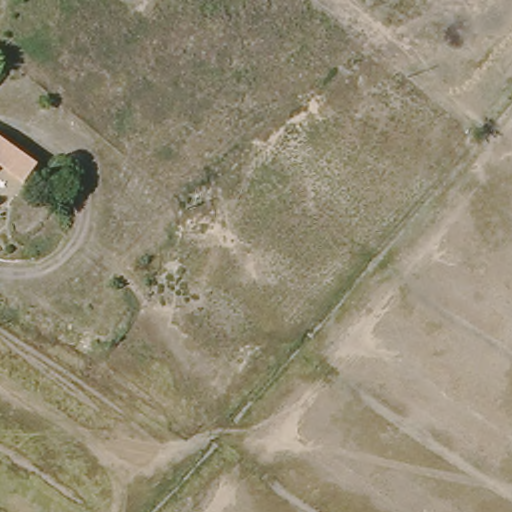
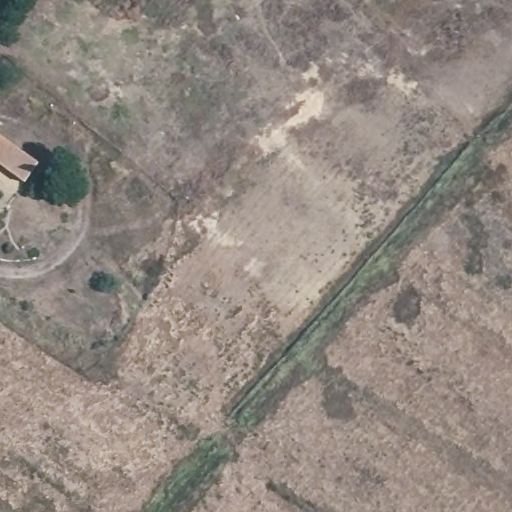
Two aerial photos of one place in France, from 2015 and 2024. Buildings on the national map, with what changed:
unchanged [(0,138),(38,166),(25,184),(0,165),(0,138)]

